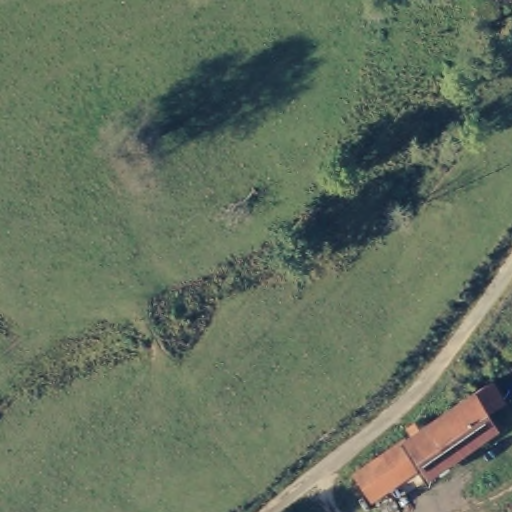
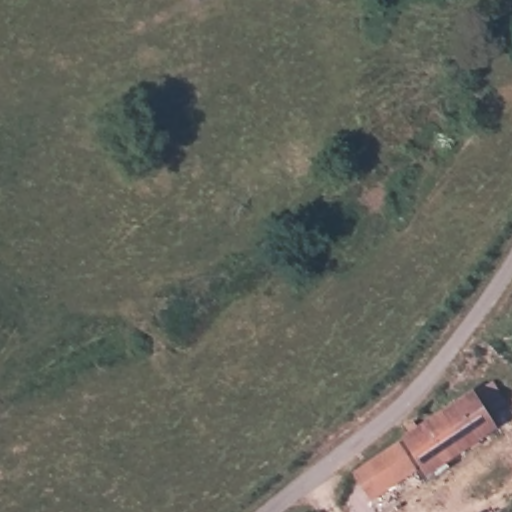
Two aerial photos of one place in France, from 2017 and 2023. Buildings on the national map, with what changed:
unchanged [(431,472),(409,441),(475,389),(499,421),(431,472)]
unchanged [(411,454),(434,485),(405,502),(383,471),(411,454)]

